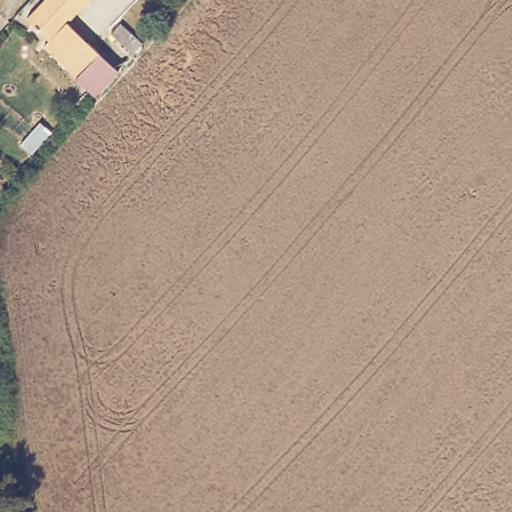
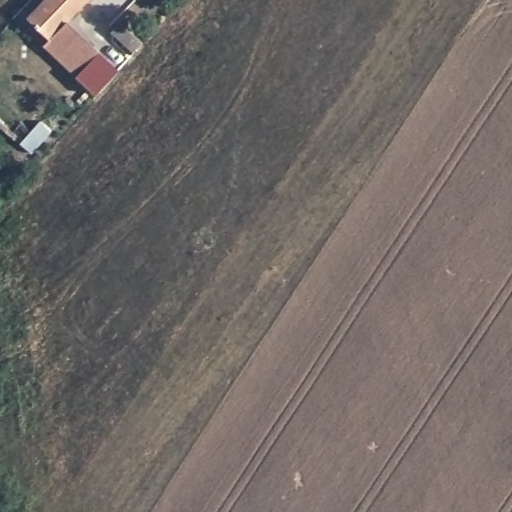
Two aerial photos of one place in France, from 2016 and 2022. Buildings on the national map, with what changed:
unchanged [(45,0),(93,0),(71,21),(53,39),(31,15),(45,0)]
unchanged [(71,21),(103,53),(80,75),(49,43),(53,39),(71,21)]

